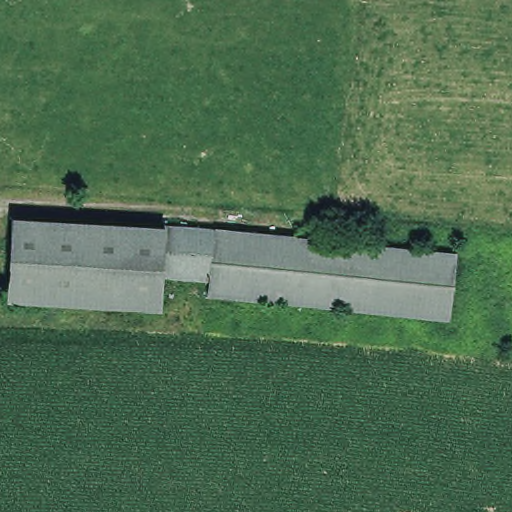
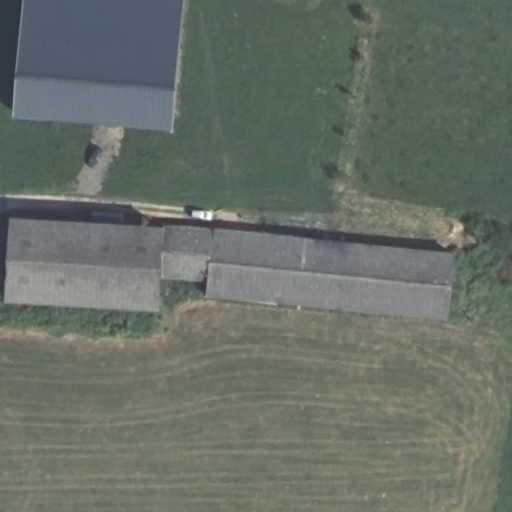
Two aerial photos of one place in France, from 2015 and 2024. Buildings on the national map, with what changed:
new [(168,135),(6,121),(19,0),(181,0),(168,135)]
unchanged [(16,213),(165,226),(161,270),(157,309),(9,297),(16,213)]
unchanged [(215,275),(161,270),(165,226),(219,230),(215,275)]
unchanged [(212,296),(215,275),(219,230),(459,251),(452,318),(212,296)]

